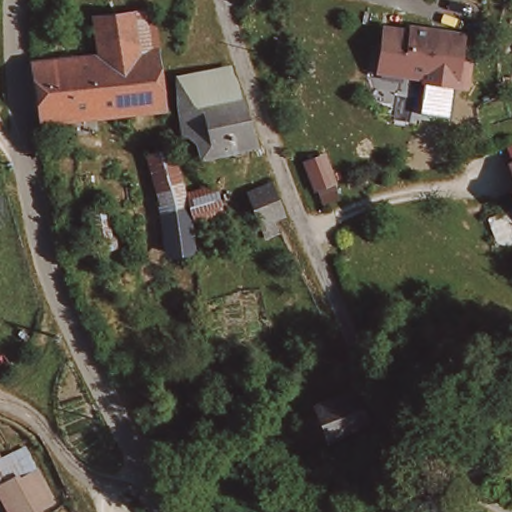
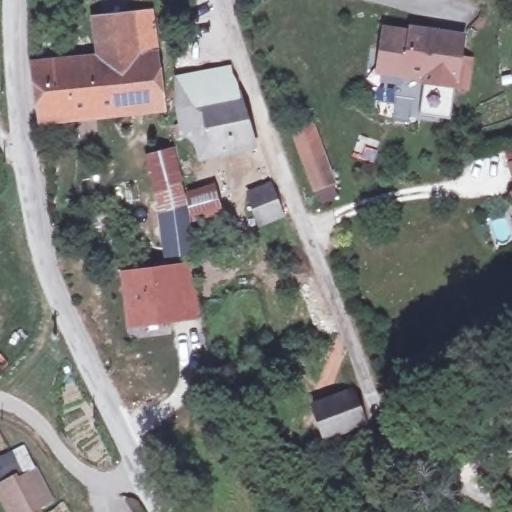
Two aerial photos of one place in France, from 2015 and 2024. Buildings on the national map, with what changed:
unchanged [(142,52),(108,53),(106,15),(160,10),(163,102),(143,105),(142,52)]
unchanged [(459,81),(427,80),(427,70),(385,68),(390,31),(411,31),(417,26),(465,29),(459,81)]
unchanged [(50,111),(50,108),(42,59),(108,53),(142,52),(143,105),(50,111)]
unchanged [(192,98),(191,74),(240,69),(240,93),(192,98)]
unchanged [(240,93),(245,96),(250,146),(197,150),(196,133),(187,133),(185,98),(192,98),(240,93)]
unchanged [(160,247),(164,171),(164,157),(167,151),(178,151),(179,169),(177,244),(160,247)]
unchanged [(335,184),(322,190),(313,165),(327,159),(335,184)]
unchanged [(247,186),(274,180),(286,213),(262,222),(247,186)]
unchanged [(88,207),(110,204),(122,244),(95,250),(75,229),(88,207)]
new [(190,261),(200,319),(126,330),(118,270),(190,261)]
new [(322,441),(315,421),(308,402),(353,385),(361,404),(368,425),(322,441)]
unchanged [(12,437),(35,489),(5,507),(0,503),(0,444),(12,437)]

